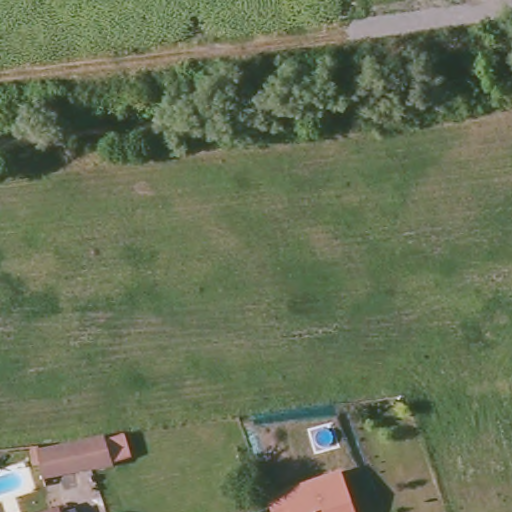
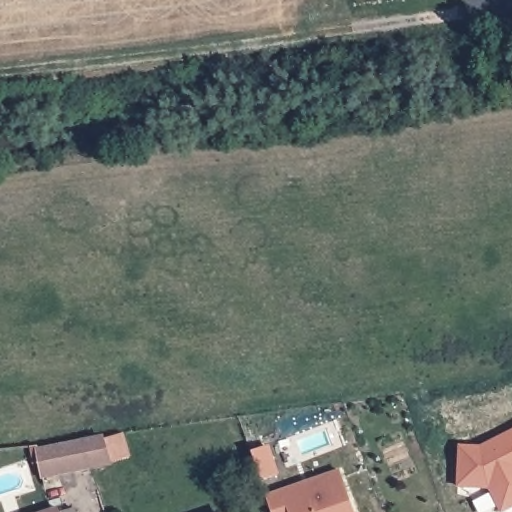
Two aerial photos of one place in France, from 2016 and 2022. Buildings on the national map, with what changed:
new [(499,512),(488,489),(461,489),(461,447),(481,447),(512,431),(512,507),(502,512),(499,512)]
unchanged [(39,453),(87,437),(108,434),(115,455),(96,461),(48,479),(39,453)]
unchanged [(342,470),(357,512),(273,512),(268,497),(342,470)]
unchanged [(59,512),(56,512),(59,511),(59,512)]

